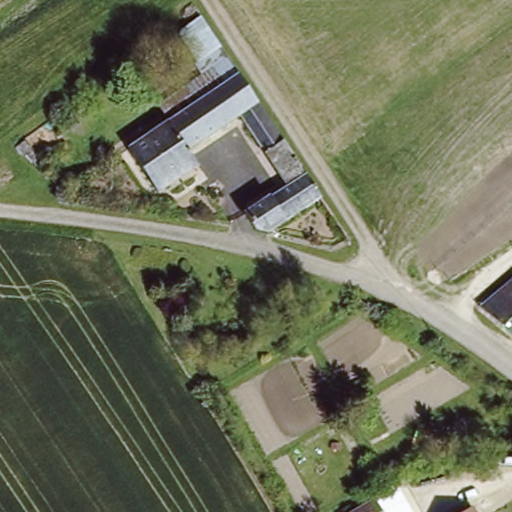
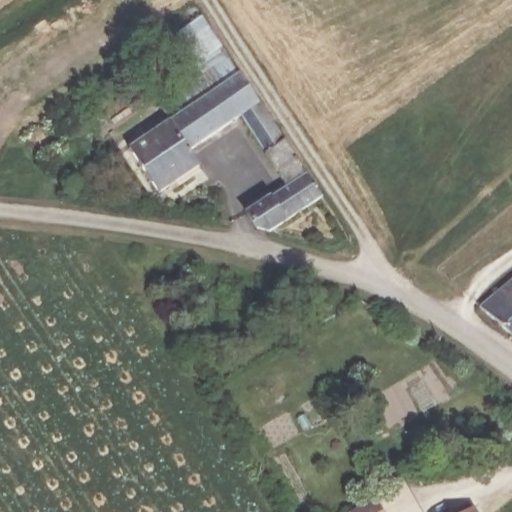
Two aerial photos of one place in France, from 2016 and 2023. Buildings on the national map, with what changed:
unchanged [(244,77),(173,123),(162,106),(232,60),(244,77)]
unchanged [(327,202),(280,234),(262,233),(250,214),(289,187),(242,120),(190,154),(199,167),(157,194),(130,151),(173,123),(244,77),(327,202)]
unchanged [(477,301),(512,274),(512,329),(482,303),(477,301)]
unchanged [(372,495),(383,512),(344,512),(347,510),(372,495)]
unchanged [(477,512),(470,512),(475,508),(477,512)]

